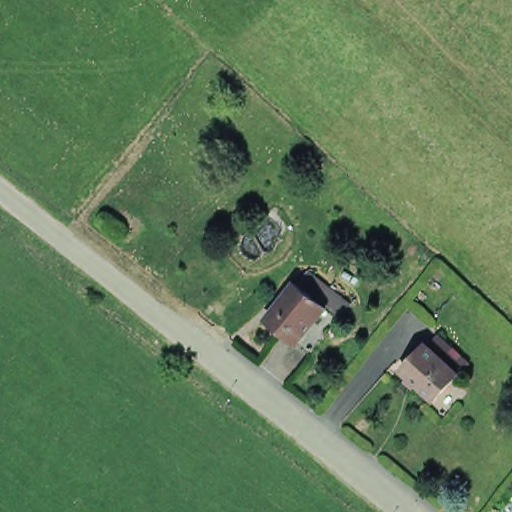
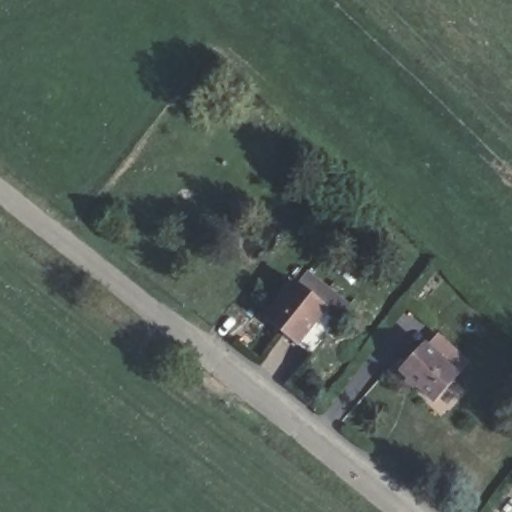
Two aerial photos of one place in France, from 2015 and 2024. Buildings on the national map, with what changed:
unchanged [(290,339),(260,315),(289,280),(293,284),(302,273),(339,304),(330,316),(302,349),(290,339)]
unchanged [(398,374),(420,345),(428,352),(437,341),(463,363),(454,373),(432,401),(398,374)]

